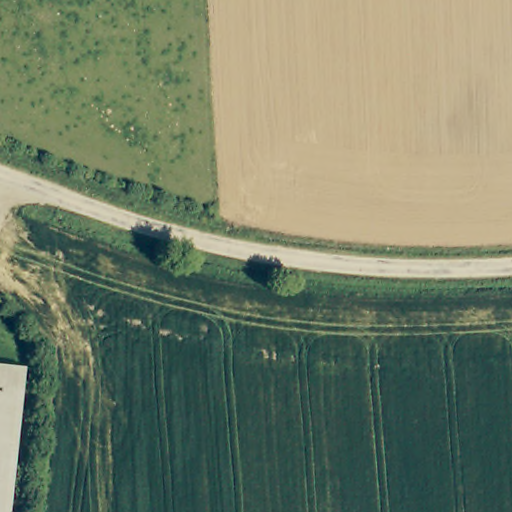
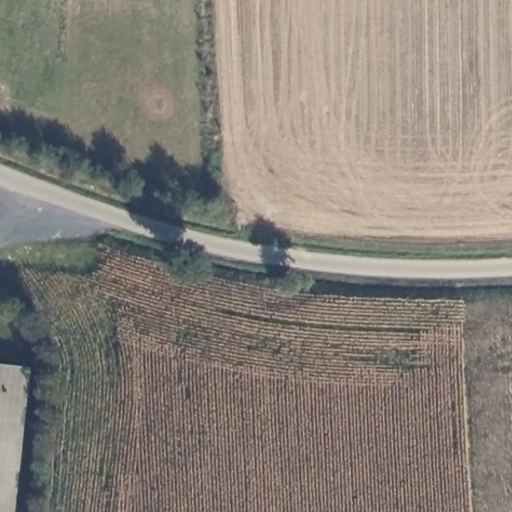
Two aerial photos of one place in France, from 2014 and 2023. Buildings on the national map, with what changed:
unchanged [(27,367),(13,512),(0,512),(0,364),(27,367)]

